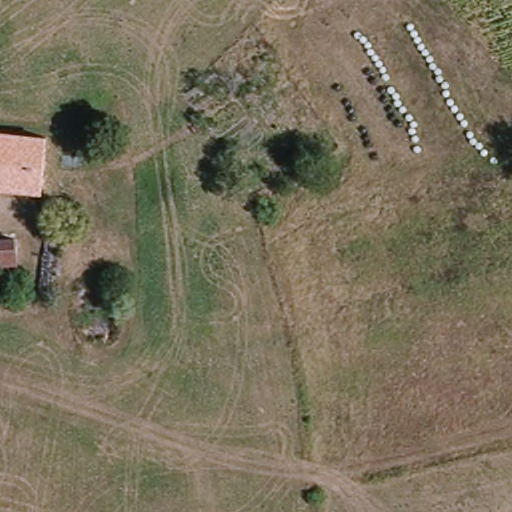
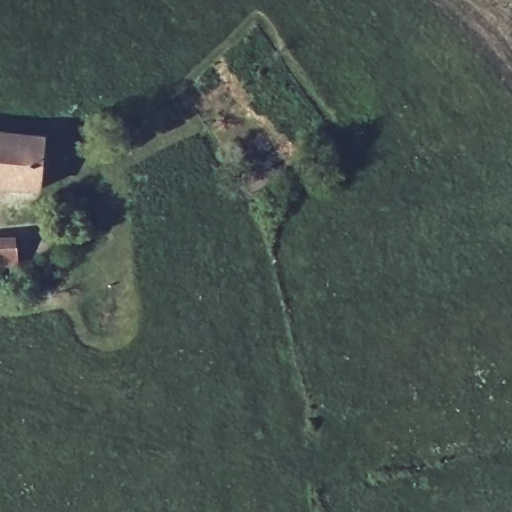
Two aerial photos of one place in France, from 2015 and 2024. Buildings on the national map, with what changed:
unchanged [(0,134),(40,137),(36,193),(0,190),(0,134)]
unchanged [(16,264),(0,266),(0,241),(14,240),(16,264)]

